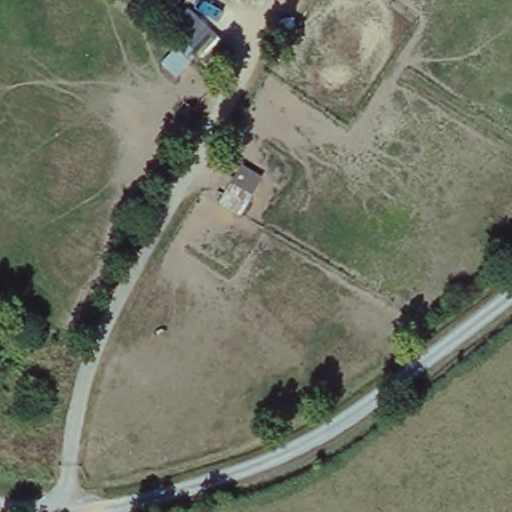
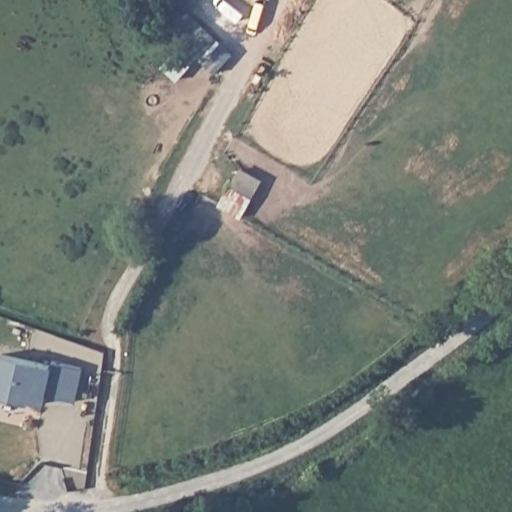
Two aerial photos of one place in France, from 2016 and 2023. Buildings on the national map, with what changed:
unchanged [(146,7),(150,0),(183,0),(180,6),(208,31),(193,51),(199,56),(176,79),(161,66),(182,41),(146,7)]
unchanged [(222,198),(216,193),(230,164),(261,179),(241,218),(218,205),(222,198)]
new [(50,363),(80,367),(74,400),(44,394),(41,406),(0,392),(0,358),(2,351),(48,368),(50,363)]

